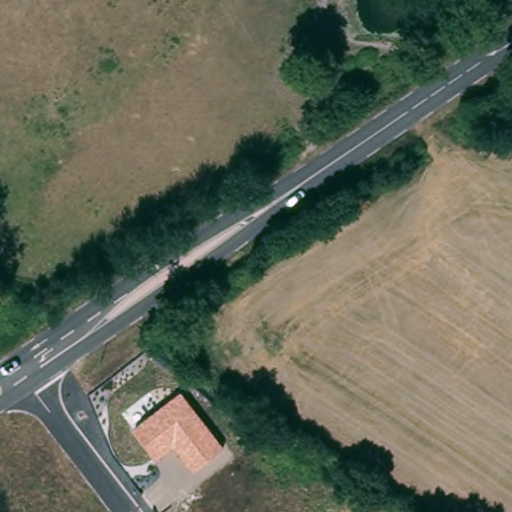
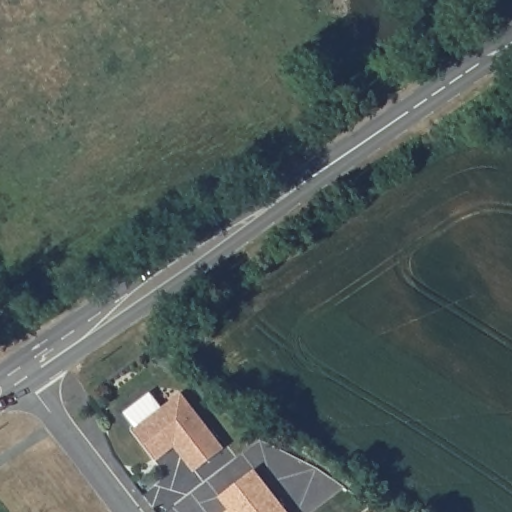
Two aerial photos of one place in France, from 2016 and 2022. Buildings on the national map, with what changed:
unchanged [(181,392),(224,449),(194,472),(175,447),(158,459),(133,427),(181,392)]
new [(254,469),(290,512),(229,512),(217,497),(254,469)]

